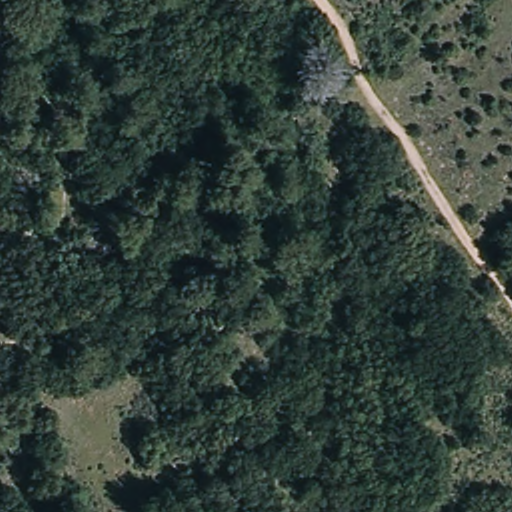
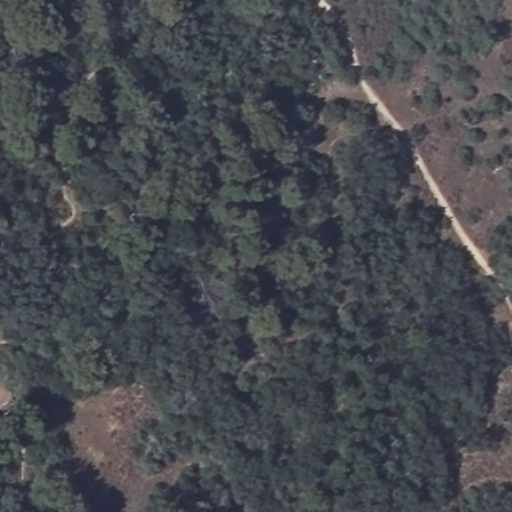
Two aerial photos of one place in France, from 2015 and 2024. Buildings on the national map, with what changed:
[]

